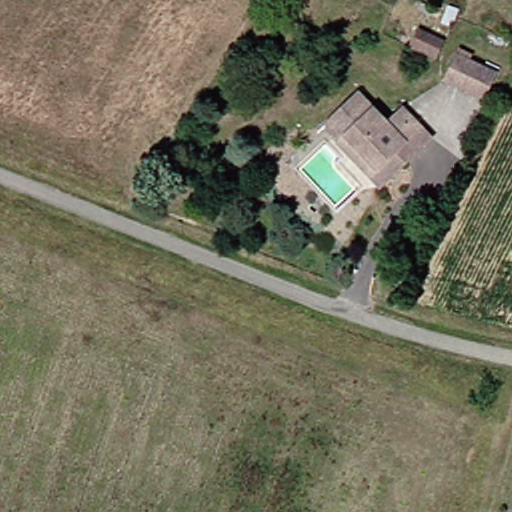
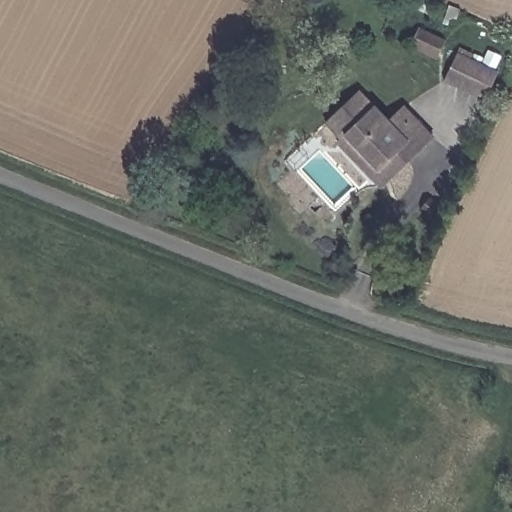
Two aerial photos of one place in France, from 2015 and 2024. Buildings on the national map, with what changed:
unchanged [(495,75),(482,104),(434,81),(447,52),(495,75)]
unchanged [(320,121),(350,92),(380,123),(398,105),(428,136),(410,152),(401,142),(370,168),(334,134),(320,121)]
unchanged [(334,134),(370,168),(401,142),(410,152),(372,186),(328,141),(334,134)]

